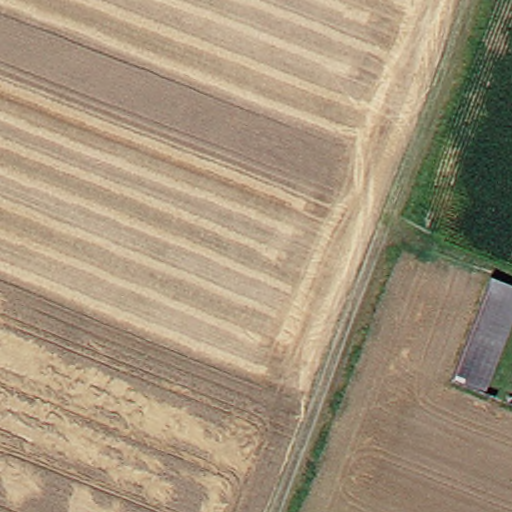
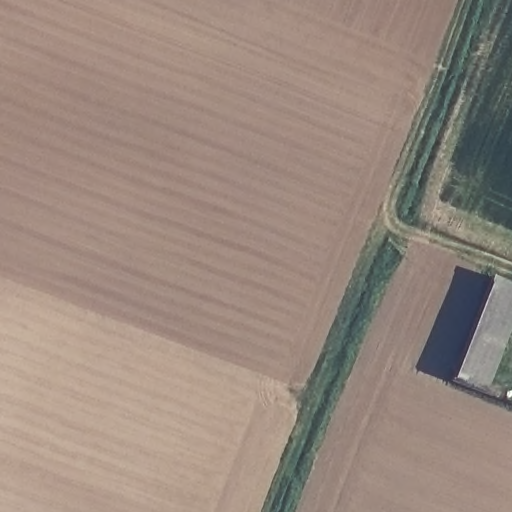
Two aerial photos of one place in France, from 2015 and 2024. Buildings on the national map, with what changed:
unchanged [(495,281),(512,288),(512,330),(486,393),(457,381),(495,281)]

